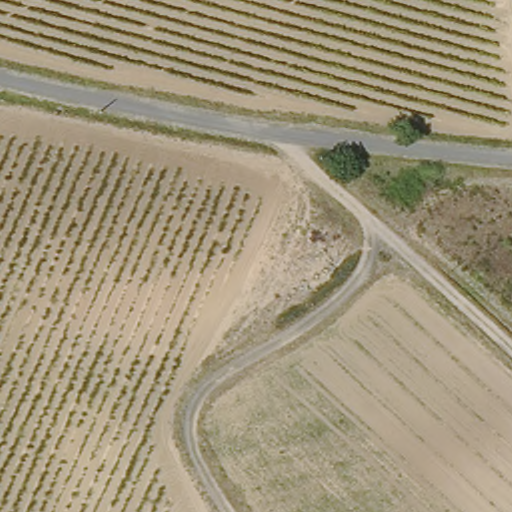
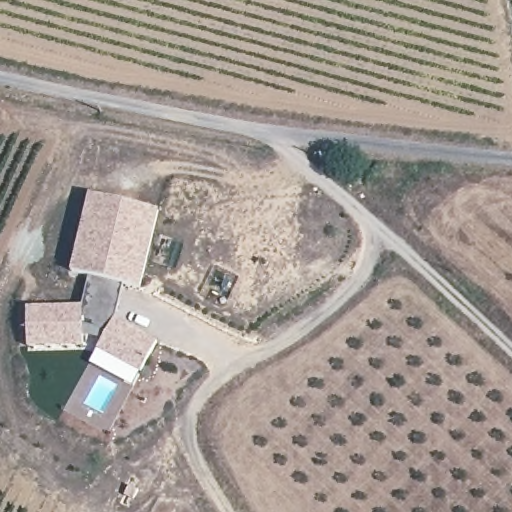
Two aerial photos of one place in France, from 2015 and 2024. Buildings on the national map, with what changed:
new [(159,211),(144,290),(123,284),(116,319),(159,341),(143,373),(99,349),(104,339),(84,336),(84,346),(29,348),(28,307),(83,306),(88,279),(73,274),(91,194),(159,211)]

